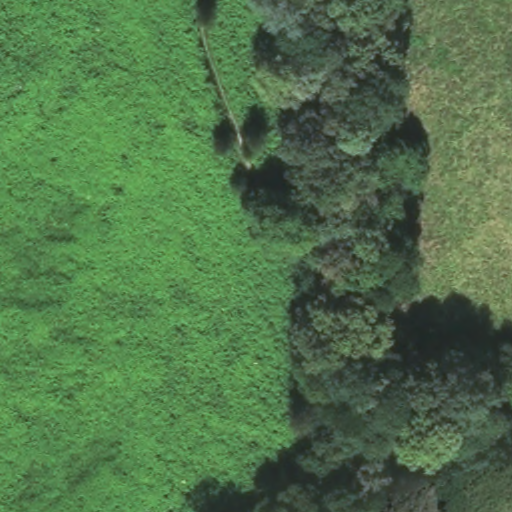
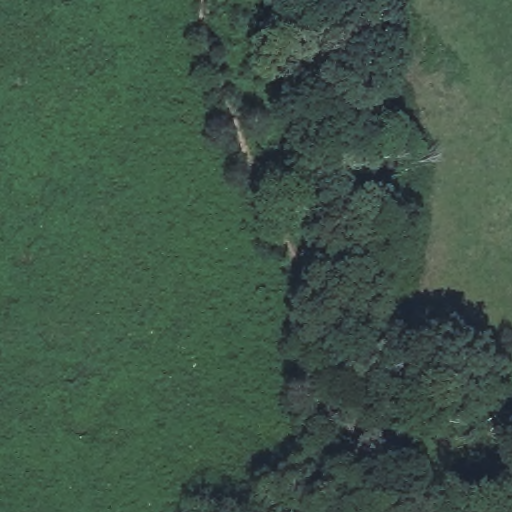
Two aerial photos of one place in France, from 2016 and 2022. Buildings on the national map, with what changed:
[]

